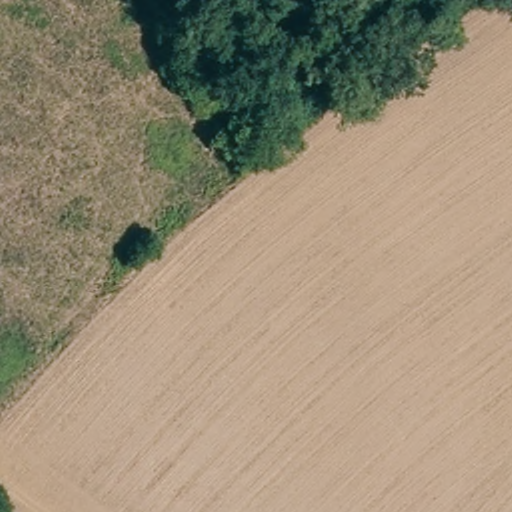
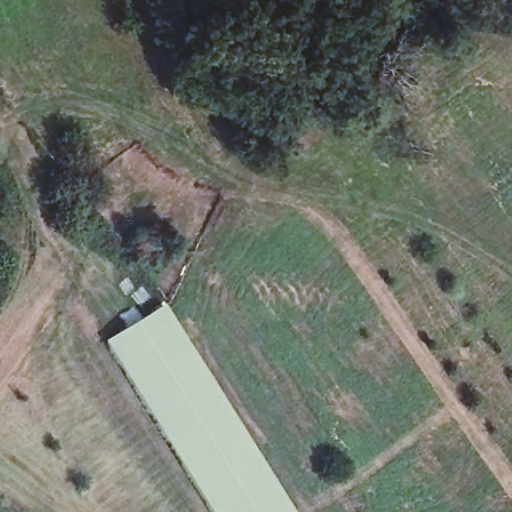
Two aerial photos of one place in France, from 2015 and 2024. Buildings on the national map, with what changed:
new [(292,512),(214,512),(106,341),(164,308),(292,512)]

